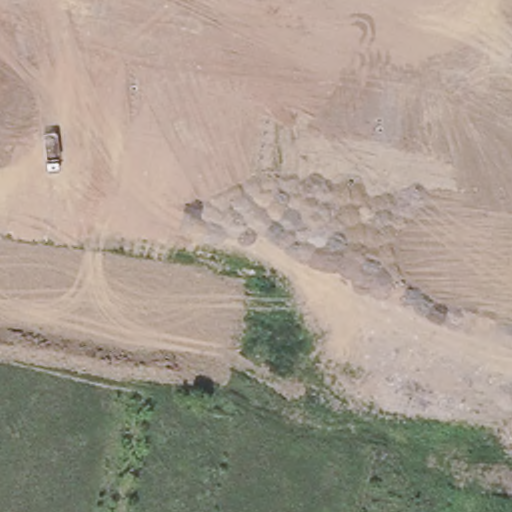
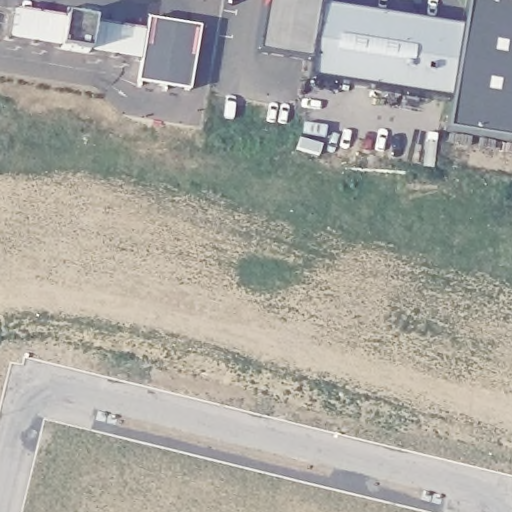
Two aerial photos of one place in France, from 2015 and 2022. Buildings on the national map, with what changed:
demolished [(154,34),(97,26),(101,0),(158,0),(154,34)]
demolished [(200,13),(203,0),(248,0),(244,20),(200,13)]
new [(265,0),(320,0),(319,6),(309,64),(256,55),(265,0)]
new [(440,26),(461,30),(466,0),(485,0),(512,5),(512,142),(445,131),(450,99),(429,96),(440,26)]
new [(310,64),(309,64),(319,6),(440,26),(427,102),(307,82),(310,64)]
new [(145,20),(198,28),(187,92),(135,83),(139,61),(87,55),(60,51),(67,11),(77,13),(94,16),(92,24),(143,32),(145,20)]
new [(12,12),(65,20),(60,50),(7,41),(12,12)]

